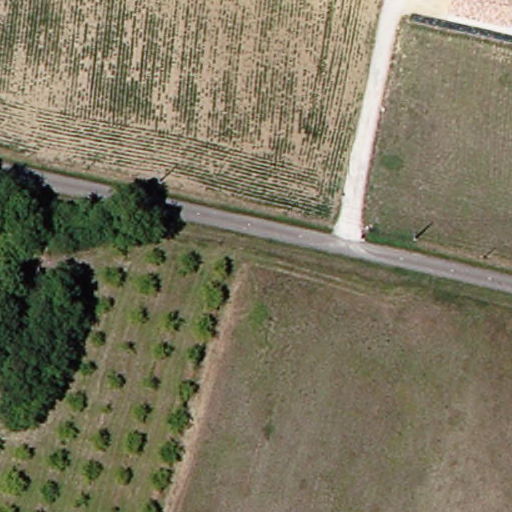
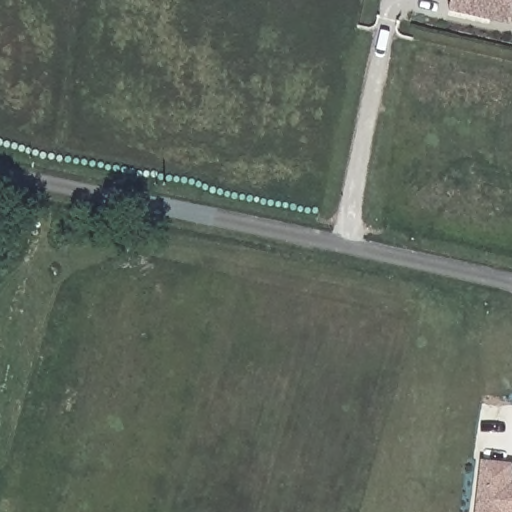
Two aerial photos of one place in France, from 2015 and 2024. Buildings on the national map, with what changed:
unchanged [(449,9),(451,0),(512,0),(512,24),(449,9)]
new [(474,512),(482,460),(512,463),(512,512),(474,512)]

